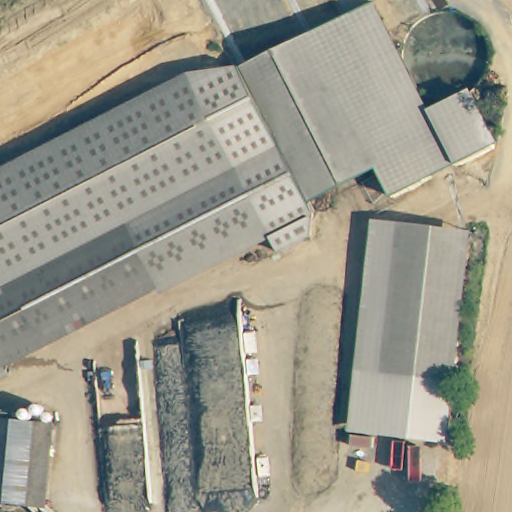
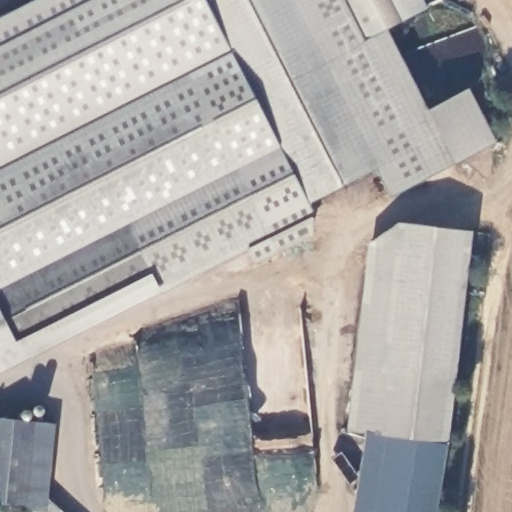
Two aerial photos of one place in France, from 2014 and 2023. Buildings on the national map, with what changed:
new [(202,0),(237,71),(190,78),(0,174),(0,19),(39,0),(202,0)]
new [(305,37),(237,71),(202,0),(424,0),(427,8),(382,31),(369,5),(305,37)]
unchanged [(450,165),(386,197),(373,171),(305,37),(369,5),(450,165)]
unchanged [(305,205),(237,71),(305,37),(373,171),(305,205)]
unchanged [(305,205),(312,217),(311,237),(278,253),(270,239),(161,295),(159,290),(3,370),(0,364),(0,355),(263,221),(190,78),(237,71),(305,205)]
unchanged [(263,221),(0,355),(0,174),(190,78),(263,221)]
unchanged [(423,111),(468,88),(496,143),(450,165),(423,111)]
unchanged [(471,232),(448,443),(348,431),(371,220),(471,232)]
unchanged [(0,378),(0,364),(6,376),(0,378)]
unchanged [(0,438),(0,418),(4,419),(2,439),(0,438)]
unchanged [(4,419),(64,425),(55,506),(0,500),(0,457),(2,439),(4,419)]
new [(448,443),(437,512),(354,512),(366,433),(448,443)]
unchanged [(0,457),(0,438),(2,439),(0,457)]
new [(26,503),(55,506),(55,502),(66,512),(36,512),(26,503)]

